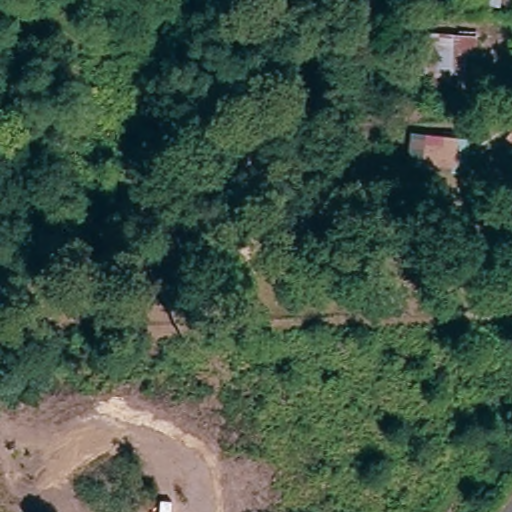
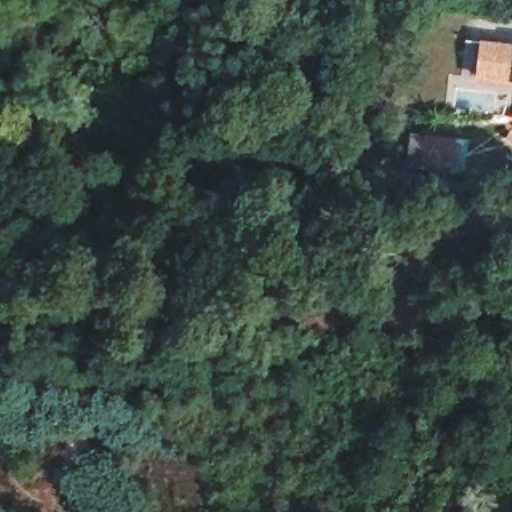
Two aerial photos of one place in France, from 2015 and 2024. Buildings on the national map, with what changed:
new [(480,39),(512,42),(512,88),(475,82),(480,39)]
unchanged [(411,129),(462,141),(455,163),(406,149),(411,129)]
unchanged [(506,141),(512,134),(512,144),(506,141)]

